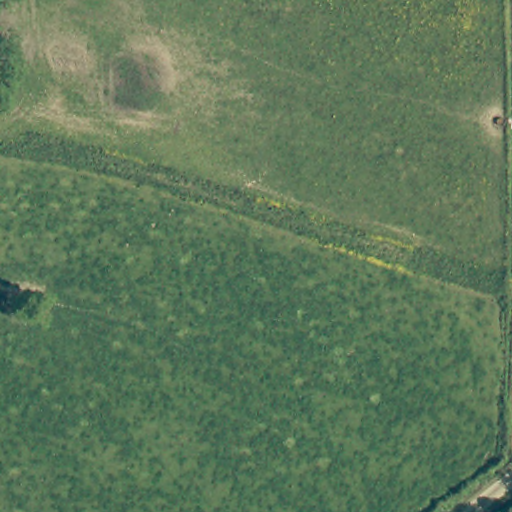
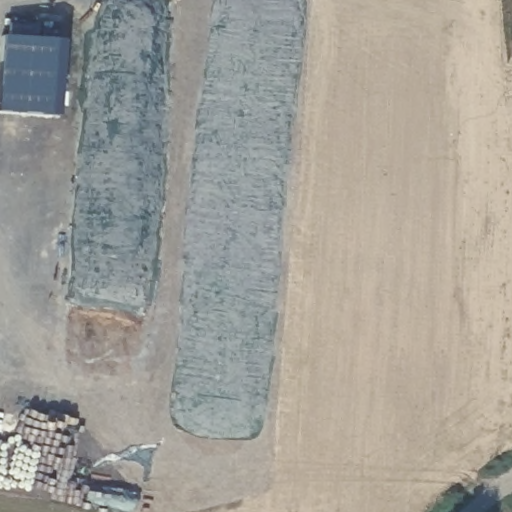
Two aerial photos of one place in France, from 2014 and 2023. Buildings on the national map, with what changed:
new [(65,47),(58,122),(0,117),(0,95),(5,41),(65,47)]

